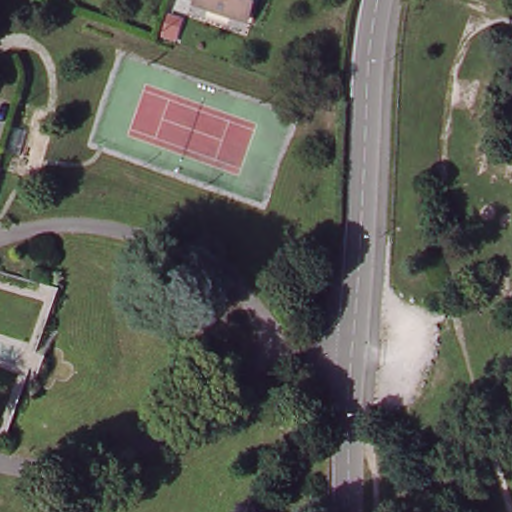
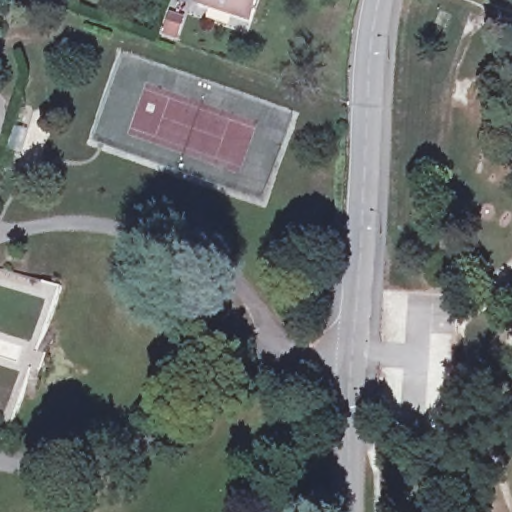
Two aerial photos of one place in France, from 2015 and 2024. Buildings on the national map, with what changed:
unchanged [(199,0),(257,0),(252,17),(199,0)]

